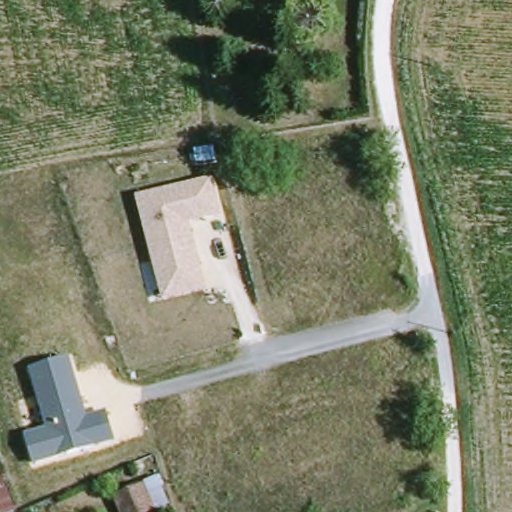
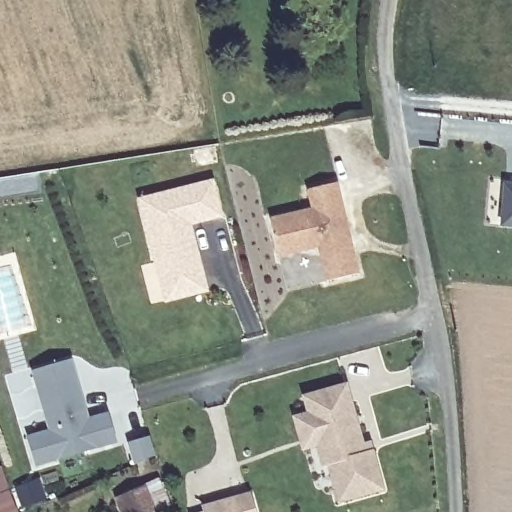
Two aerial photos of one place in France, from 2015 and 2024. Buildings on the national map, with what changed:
unchanged [(212,180),(221,215),(192,224),(207,289),(162,301),(137,198),(212,180)]
new [(313,211),(308,190),(337,183),(359,275),(328,283),(320,248),(280,258),(271,221),(313,211)]
new [(502,226),(503,185),(512,186),(512,227),(502,226)]
unchanged [(72,359),(88,418),(107,412),(117,441),(37,467),(27,436),(47,429),(30,371),(72,359)]
new [(371,443),(373,452),(384,491),(340,503),(330,466),(325,468),(318,447),(304,451),(295,419),(310,415),(305,398),(347,386),(352,403),(363,445),(371,443)]
unchanged [(156,512),(135,512),(128,495),(157,483),(167,507),(156,512)]
new [(257,512),(204,512),(203,509),(233,500),(252,495),(257,512)]

